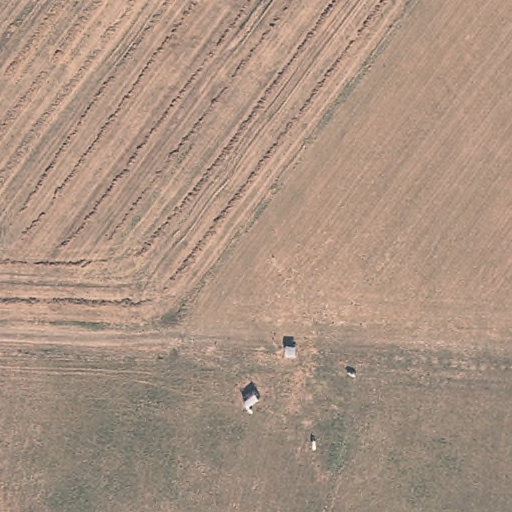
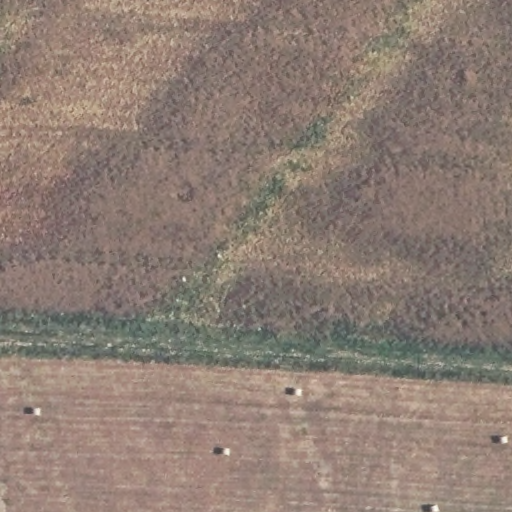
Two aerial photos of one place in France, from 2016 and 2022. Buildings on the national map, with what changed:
[]

